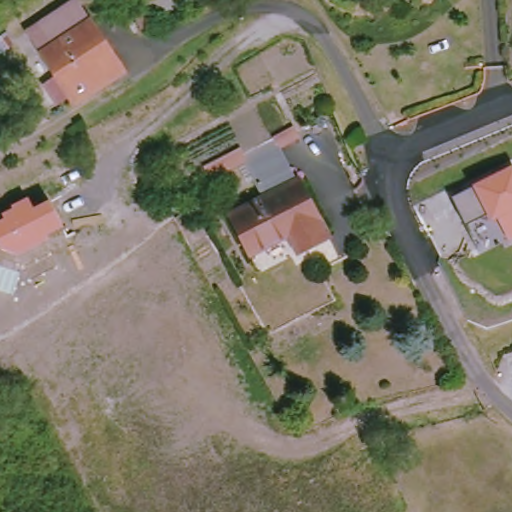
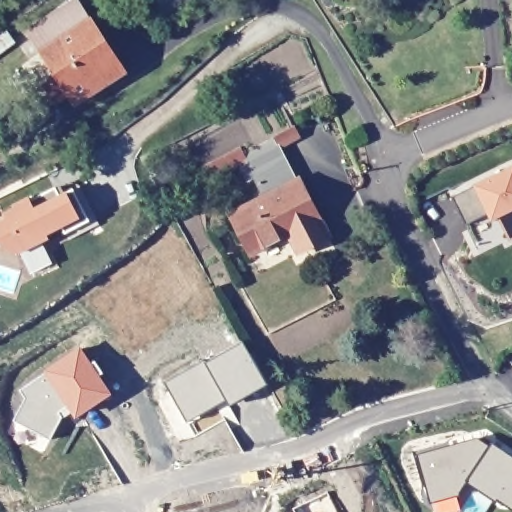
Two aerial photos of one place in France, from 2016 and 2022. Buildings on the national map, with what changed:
unchanged [(152,19),(140,26),(135,16),(147,9),(152,19)]
unchanged [(99,71),(66,93),(32,42),(80,11),(107,53),(113,62),(99,71)]
unchanged [(298,139),(280,149),(295,181),(299,179),(329,237),(297,254),(289,236),(252,255),(232,215),(262,198),(245,162),(212,179),(206,166),(240,148),(244,155),(273,139),(272,137),(292,127),(298,139)]
new [(507,240),(500,222),(492,227),(475,187),(512,168),(512,238),(507,240)]
new [(54,181),(59,189),(74,182),(90,214),(64,227),(48,195),(32,203),(28,194),(54,181)]
unchanged [(3,215),(14,210),(12,208),(30,198),(35,209),(52,201),(65,227),(47,236),(50,241),(19,256),(4,251),(0,244),(0,223),(6,220),(3,215)]
new [(224,397),(184,419),(164,383),(242,338),(265,380),(227,402),(224,397)]
new [(24,401),(19,390),(79,347),(109,394),(76,416),(70,406),(60,413),(62,418),(50,441),(13,422),(24,401)]
new [(466,481),(459,495),(429,503),(415,454),(477,437),(490,444),(492,442),(512,455),(512,509),(466,481)]
new [(337,512),(298,512),(296,508),(328,492),(337,512)]

